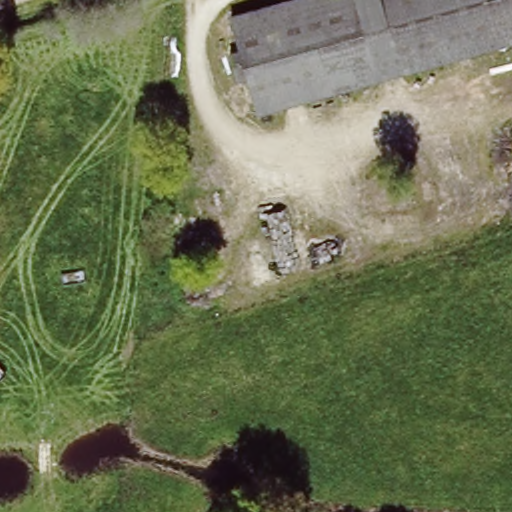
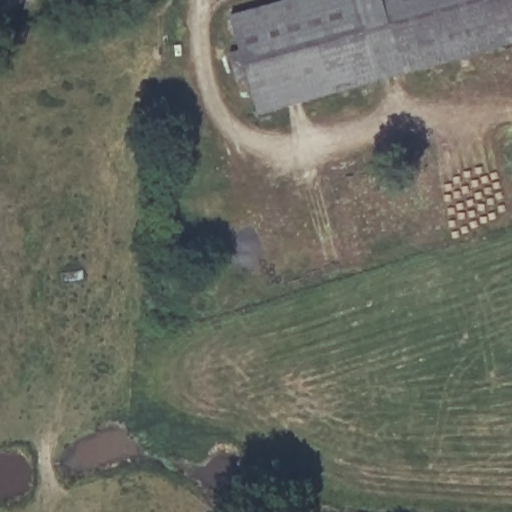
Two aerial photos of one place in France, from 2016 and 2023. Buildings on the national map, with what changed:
unchanged [(512,43),(264,112),(253,73),(235,78),(226,45),(245,40),(239,19),(309,0),(512,0),(512,43)]

